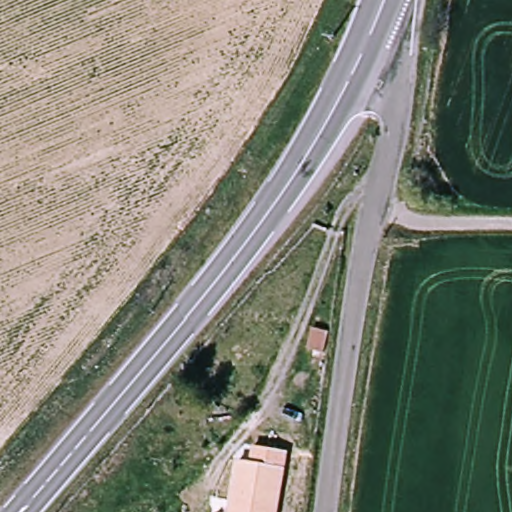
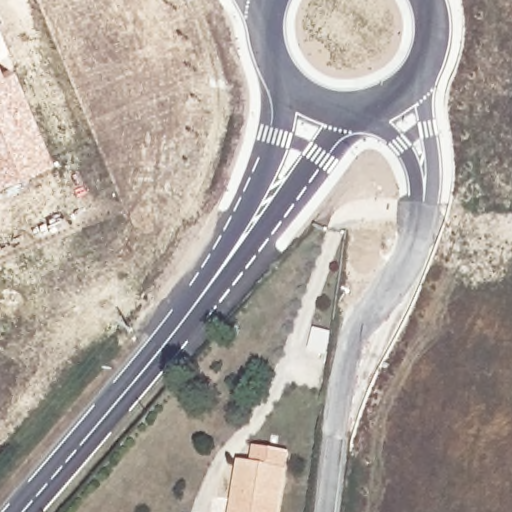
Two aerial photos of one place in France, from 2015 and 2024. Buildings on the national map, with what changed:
new [(51,162),(0,183),(0,72),(11,68),(51,162)]
unchanged [(327,345),(312,342),(314,324),(329,328),(327,345)]
unchanged [(240,463),(253,466),(256,451),(287,457),(276,512),(231,512),(240,463)]

